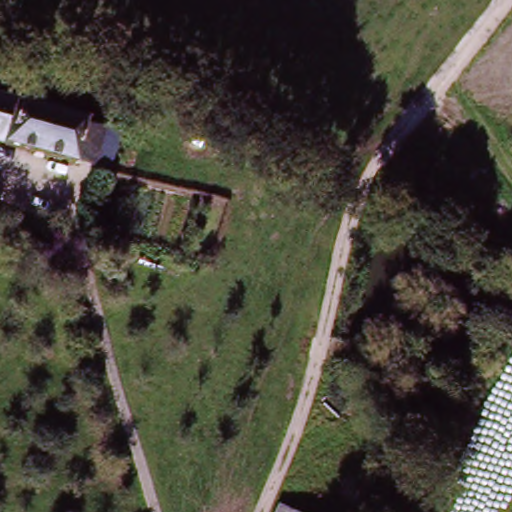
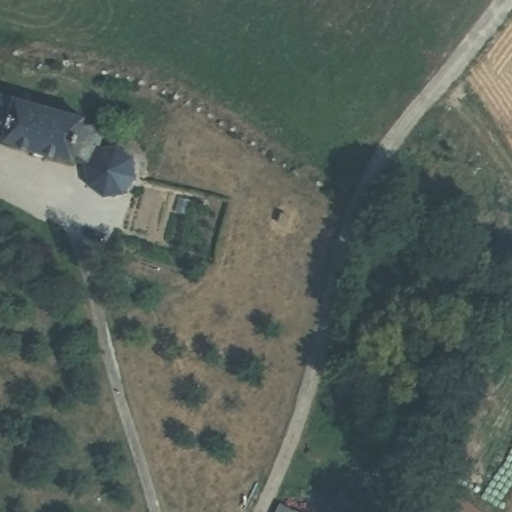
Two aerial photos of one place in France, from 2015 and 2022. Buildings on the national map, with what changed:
unchanged [(75,161),(0,141),(0,94),(87,118),(87,119),(75,159),(75,161)]
unchanged [(75,159),(87,119),(121,129),(110,169),(75,159)]
unchanged [(293,512),(281,512),(283,507),(293,512)]

